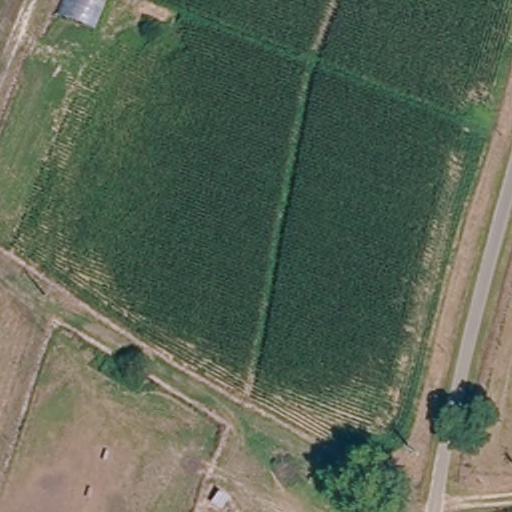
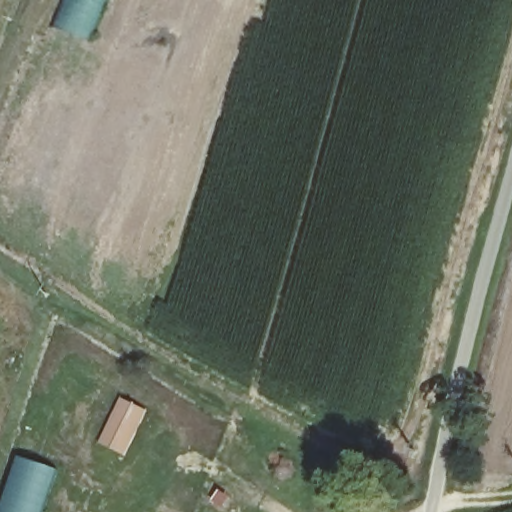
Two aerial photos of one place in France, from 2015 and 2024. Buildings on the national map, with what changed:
unchanged [(58,0),(105,0),(86,50),(44,35),(58,0)]
new [(120,397),(147,410),(124,456),(97,443),(120,397)]
new [(45,512),(0,512),(18,456),(59,471),(45,512)]

